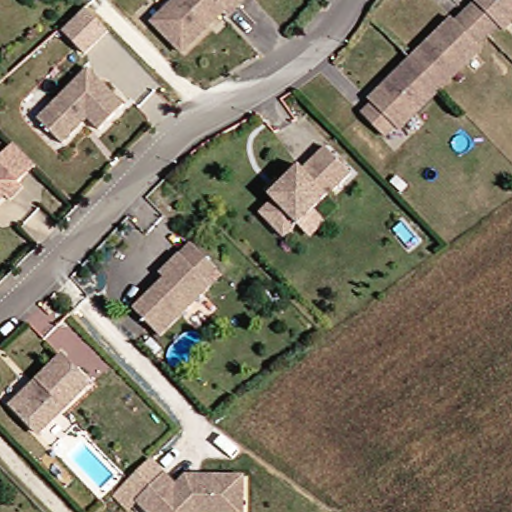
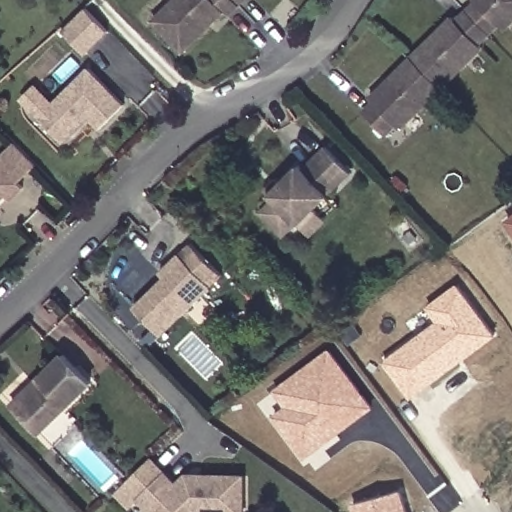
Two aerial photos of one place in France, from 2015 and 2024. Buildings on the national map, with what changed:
unchanged [(233,6),(223,16),(219,12),(177,52),(147,22),(169,0),(227,0),(233,6)]
unchanged [(233,6),(227,0),(238,0),(233,6)]
unchanged [(476,2),(474,0),(512,0),(512,22),(504,30),(499,24),(488,35),(466,12),(476,2)]
unchanged [(108,33),(84,56),(62,33),(85,10),(108,33)]
unchanged [(478,45),(481,49),(441,88),(411,59),(452,18),(456,22),(466,12),(488,35),(478,45)]
unchanged [(441,88),(399,129),(396,126),(385,136),(363,113),(373,103),(369,100),(411,59),(441,88)]
unchanged [(62,144),(38,120),(89,69),(125,106),(100,131),(88,119),(84,123),(62,144)]
unchanged [(31,166),(14,183),(19,188),(6,201),(1,196),(0,197),(0,153),(9,144),(31,166)]
unchanged [(259,190),(271,178),(275,183),(294,165),(298,168),(320,146),(346,173),(309,209),(313,212),(297,228),(292,223),(279,236),(254,212),(268,198),(264,194),(259,190)]
new [(505,221),(512,215),(512,230),(505,221)]
unchanged [(221,276),(159,336),(132,309),(163,279),(159,274),(165,267),(189,244),(221,276)]
new [(383,361),(437,321),(428,306),(459,283),(498,335),(412,398),(383,361)]
new [(272,416),(284,407),(274,390),(330,348),(374,408),(304,460),(272,416)]
unchanged [(10,405),(61,356),(89,384),(38,433),(10,405)]
unchanged [(129,504),(114,489),(150,454),(177,481),(188,470),(202,471),(245,472),(243,512),(203,511),(201,512),(154,512),(138,495),(129,504)]
new [(403,490),(409,512),(355,512),(353,504),(403,490)]

